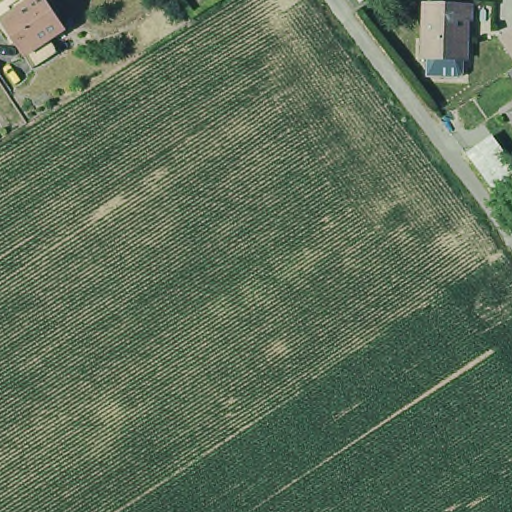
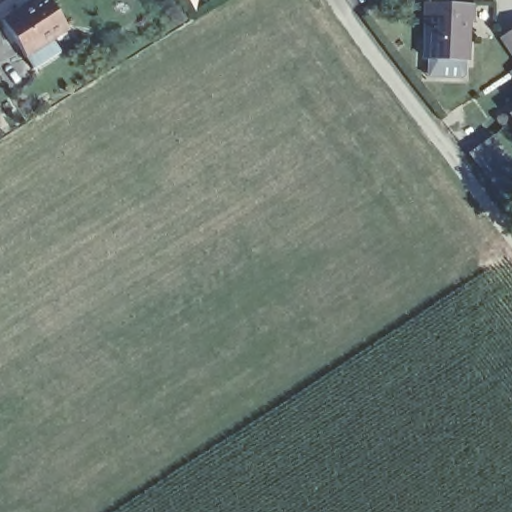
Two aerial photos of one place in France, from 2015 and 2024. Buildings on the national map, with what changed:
unchanged [(28,45),(5,9),(19,0),(60,0),(71,17),(55,27),(65,40),(37,58),(28,45)]
unchanged [(430,1),(477,2),(476,19),(471,19),(470,59),(427,57),(430,1)]
unchanged [(512,28),(512,41),(506,32),(512,28)]
unchanged [(512,160),(512,182),(498,192),(466,151),(490,132),(512,160)]

